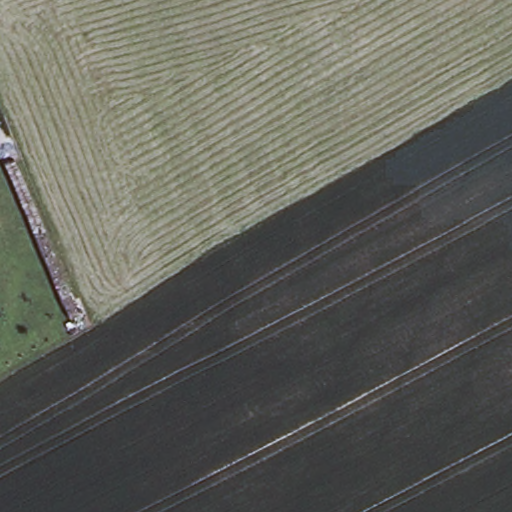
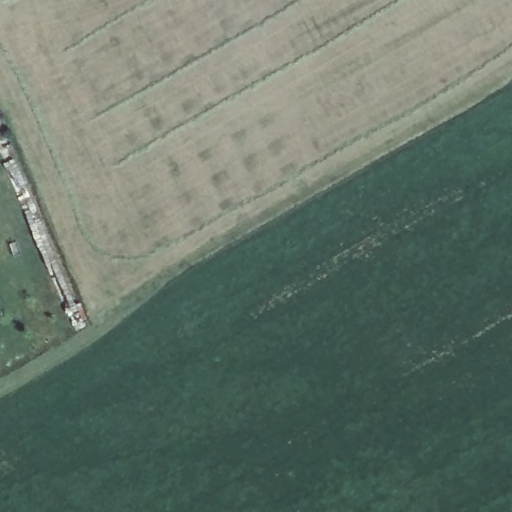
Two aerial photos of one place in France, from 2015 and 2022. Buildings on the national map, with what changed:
[]

